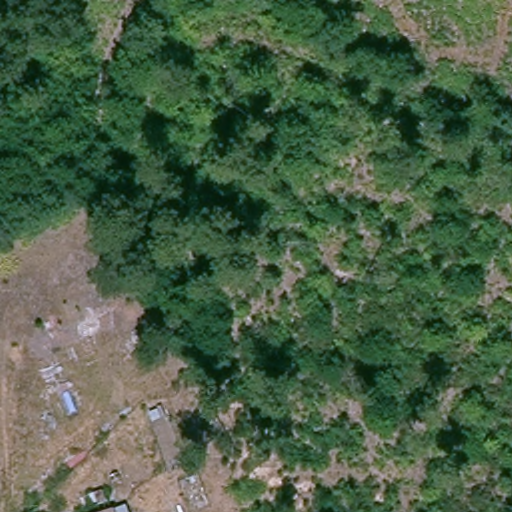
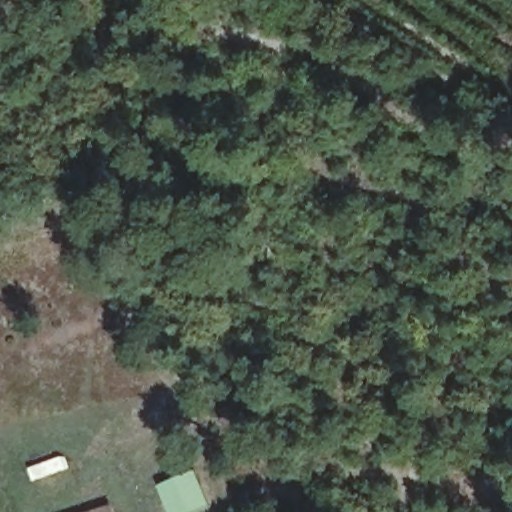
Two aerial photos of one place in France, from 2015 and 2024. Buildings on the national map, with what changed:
new [(200,477),(211,506),(197,512),(171,512),(160,487),(185,477),(186,482),(200,477)]

